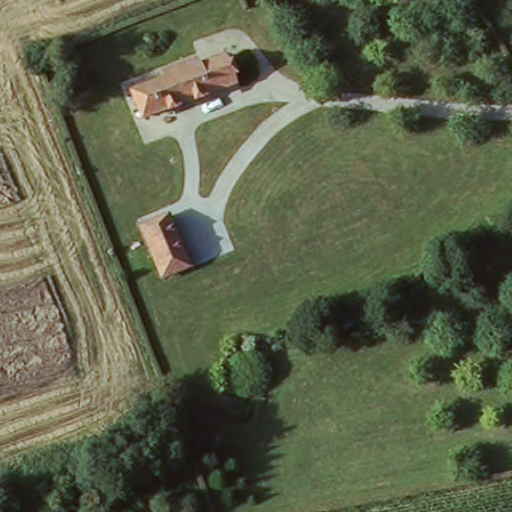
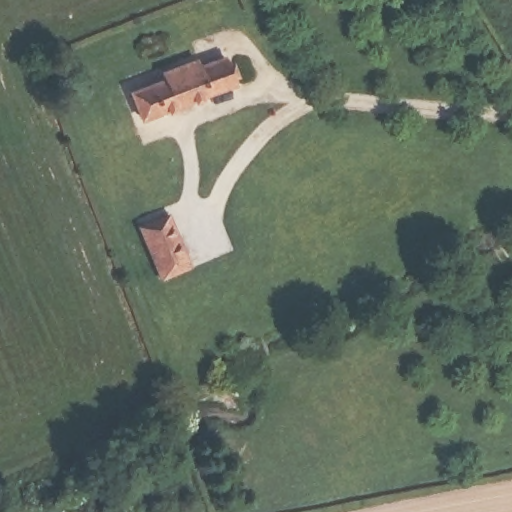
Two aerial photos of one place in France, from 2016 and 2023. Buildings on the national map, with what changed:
unchanged [(146,126),(135,97),(166,86),(165,80),(199,66),(201,74),(223,66),(234,91),(146,126)]
unchanged [(172,215),(195,264),(162,279),(140,227),(172,215)]

